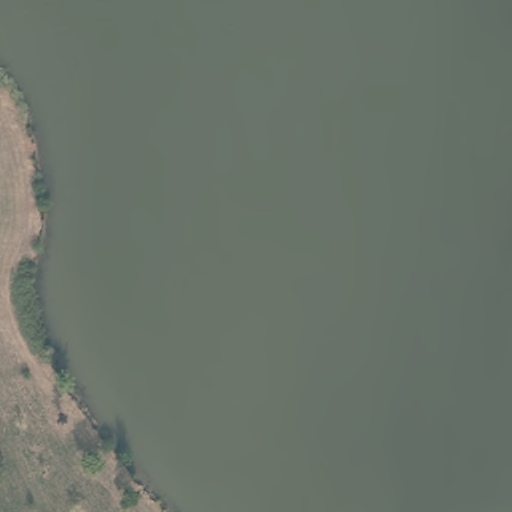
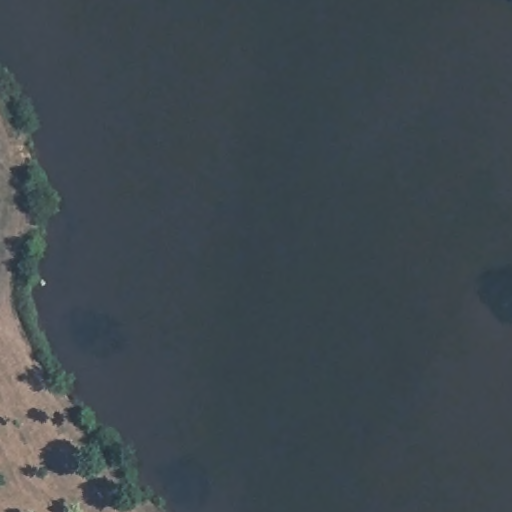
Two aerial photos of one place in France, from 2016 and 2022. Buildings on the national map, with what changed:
[]

